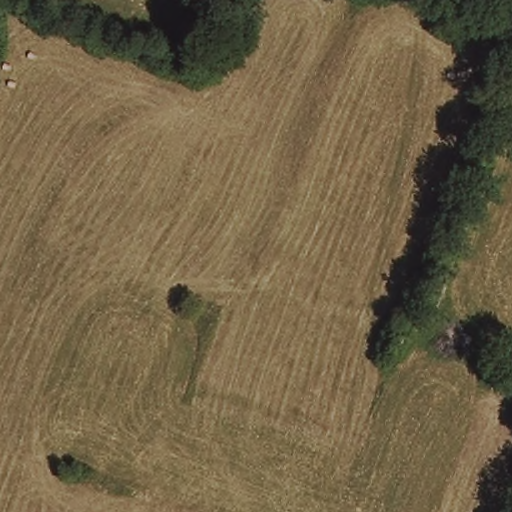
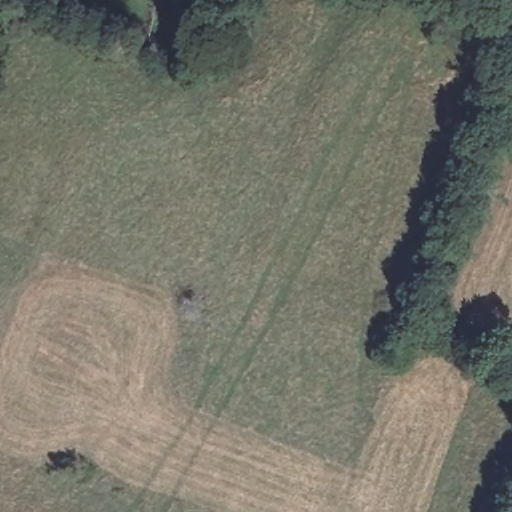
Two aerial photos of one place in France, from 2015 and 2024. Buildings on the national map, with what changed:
[]

